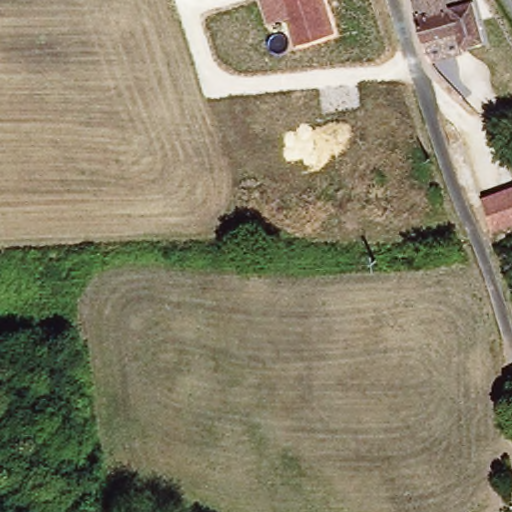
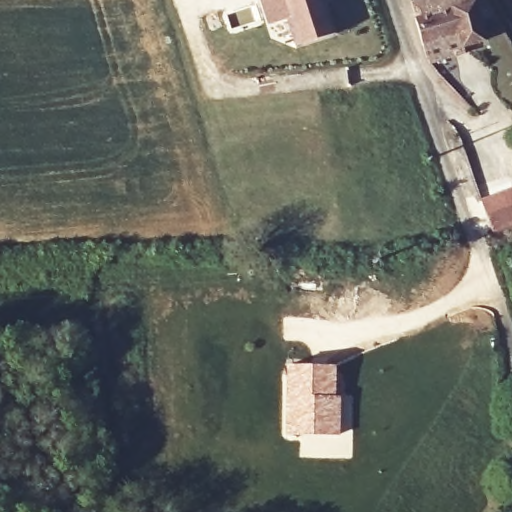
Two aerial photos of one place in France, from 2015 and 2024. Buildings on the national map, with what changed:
unchanged [(296,46),(288,21),(270,26),(261,0),(324,0),(335,34),(296,46)]
unchanged [(419,19),(415,1),(426,2),(426,0),(474,0),(477,10),(487,46),(465,52),(429,57),(426,45),(419,19)]
unchanged [(481,205),(512,197),(512,231),(494,237),(481,205)]
new [(283,364),(336,364),(337,395),(340,395),(341,435),(282,436),(283,364)]

